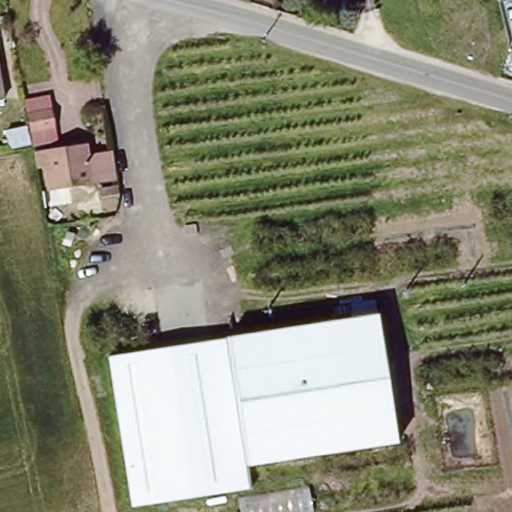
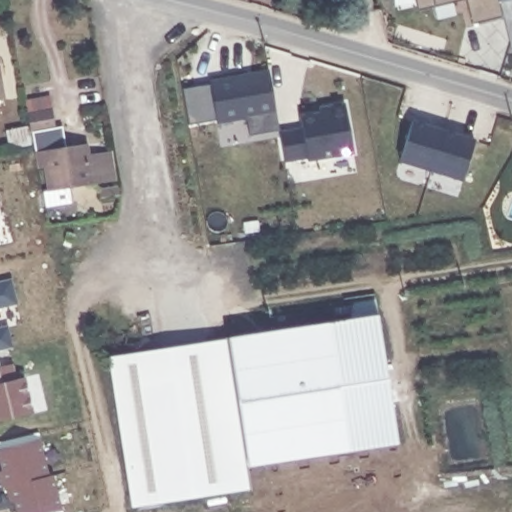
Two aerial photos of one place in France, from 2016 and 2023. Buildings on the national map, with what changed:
new [(419,10),(416,0),(465,0),(419,10)]
new [(500,0),(504,17),(472,25),(467,0),(500,0)]
new [(270,68),(277,110),(273,110),(277,129),(250,133),(247,115),(218,120),(210,78),(270,68)]
unchanged [(0,102),(0,73),(5,101),(0,102)]
unchanged [(52,95),(60,139),(32,144),(25,100),(52,95)]
new [(303,125),(300,115),(320,111),(319,106),(345,102),(354,153),(308,160),(307,156),(285,160),(280,130),(303,125)]
new [(415,120),(447,130),(434,170),(402,160),(415,120)]
new [(447,130),(477,140),(465,179),(434,170),(447,130)]
unchanged [(97,182),(91,184),(54,190),(49,167),(37,170),(34,153),(89,144),(92,156),(117,151),(120,179),(100,182),(98,182),(97,182)]
unchanged [(122,191),(105,195),(104,188),(121,185),(122,191)]
new [(17,303),(0,307),(0,283),(12,280),(17,303)]
unchanged [(397,441),(247,465),(250,488),(132,506),(109,357),(335,323),(333,308),(375,302),(397,441)]
new [(12,348),(0,351),(0,330),(7,328),(12,348)]
new [(15,379),(24,377),(32,413),(0,421),(0,366),(12,363),(15,379)]
new [(48,475),(6,485),(2,485),(0,475),(0,471),(3,470),(0,458),(0,449),(39,440),(48,475)]
new [(52,475),(61,510),(51,512),(18,512),(14,500),(10,500),(6,485),(48,475),(52,475)]

